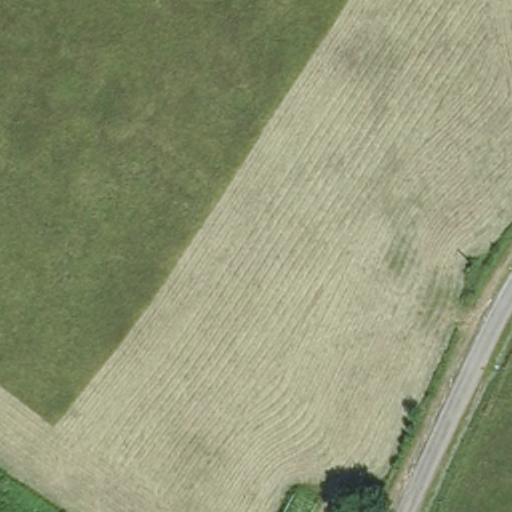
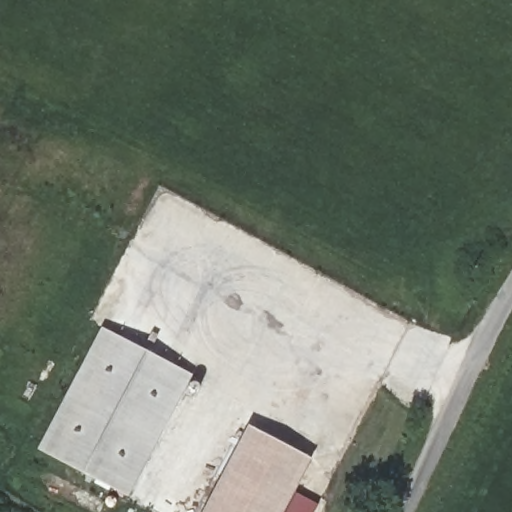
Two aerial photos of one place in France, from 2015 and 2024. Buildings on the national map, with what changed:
new [(42,452),(36,449),(100,327),(107,330),(116,335),(121,327),(137,335),(132,344),(146,351),(160,358),(165,349),(180,358),(176,366),(192,375),(127,497),(81,473),(42,452)]
new [(279,441),(311,458),(282,512),(201,512),(247,424),(279,441)]
new [(318,505),(314,512),(284,512),(295,492),(318,505)]

